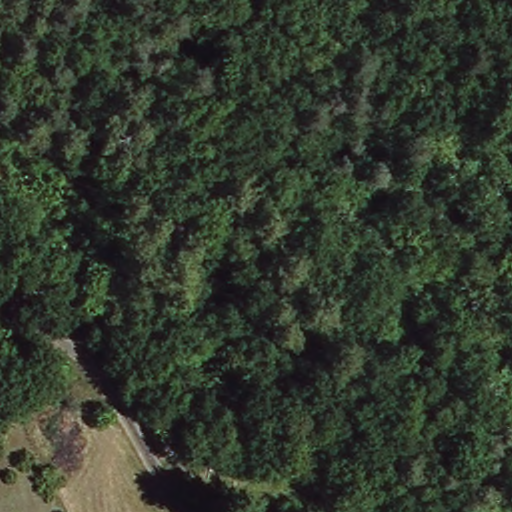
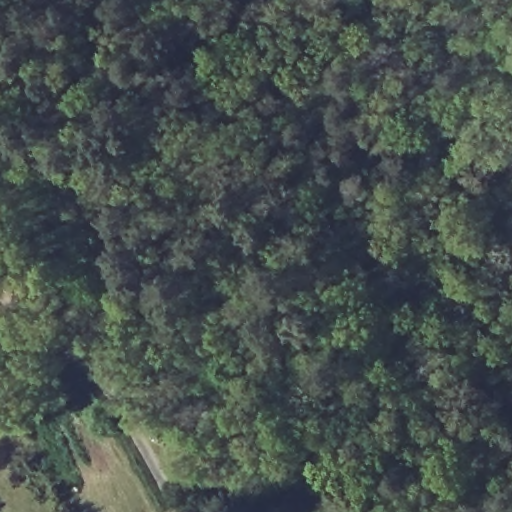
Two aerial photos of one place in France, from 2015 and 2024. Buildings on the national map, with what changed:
[]

